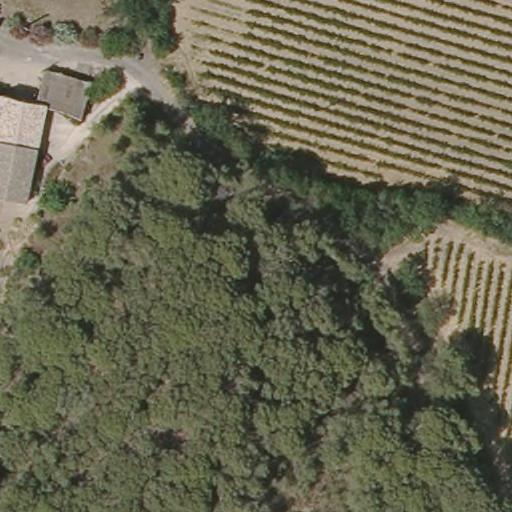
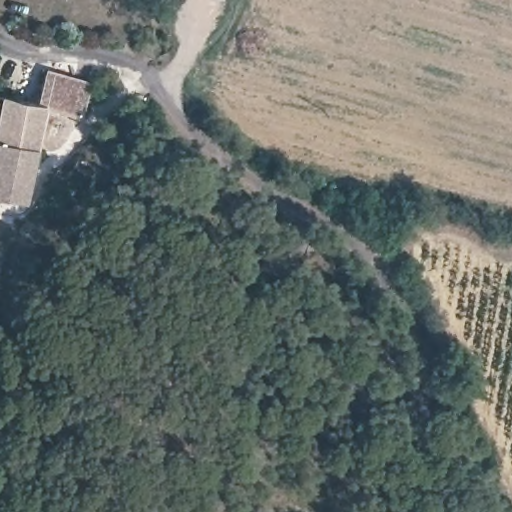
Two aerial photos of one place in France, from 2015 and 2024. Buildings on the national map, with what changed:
unchanged [(2,146),(12,96),(47,103),(55,72),(101,85),(93,121),(68,114),(62,148),(45,145),(33,207),(0,201),(0,146),(2,146)]
unchanged [(2,92),(0,105),(0,92),(2,92)]

